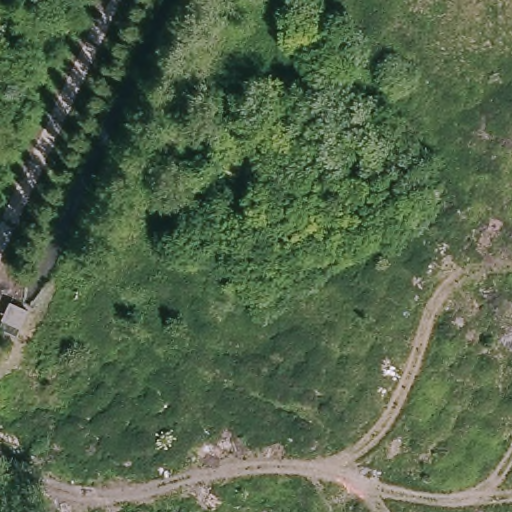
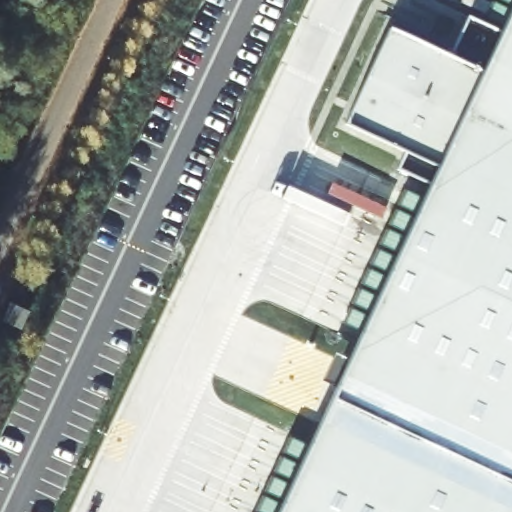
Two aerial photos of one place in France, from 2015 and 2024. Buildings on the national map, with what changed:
new [(347,114),(390,20),(452,50),(468,11),(497,26),(509,0),(512,0),(512,512),(271,512),(436,157),(347,114)]
unchanged [(31,312),(22,330),(4,321),(12,303),(16,305),(31,312)]

